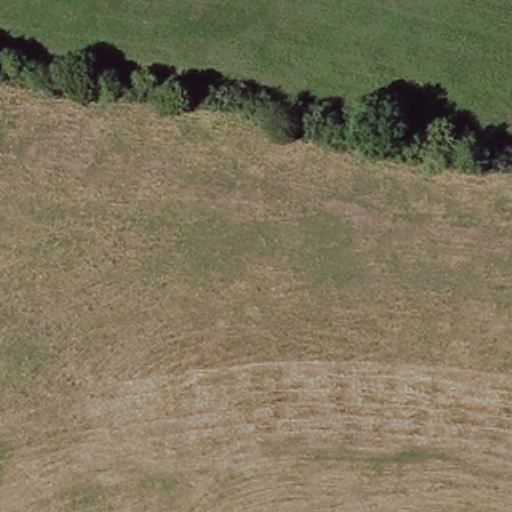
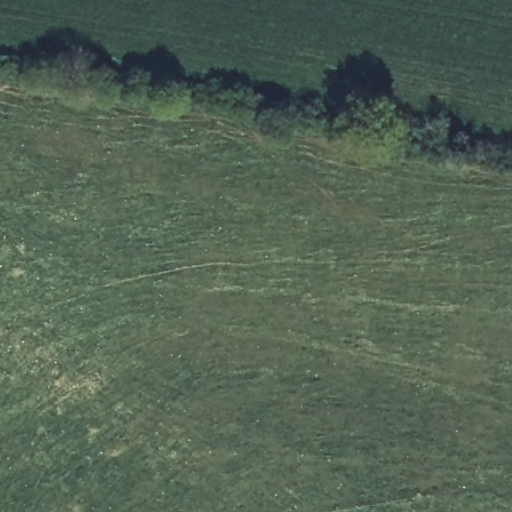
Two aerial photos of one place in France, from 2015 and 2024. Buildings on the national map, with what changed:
[]

